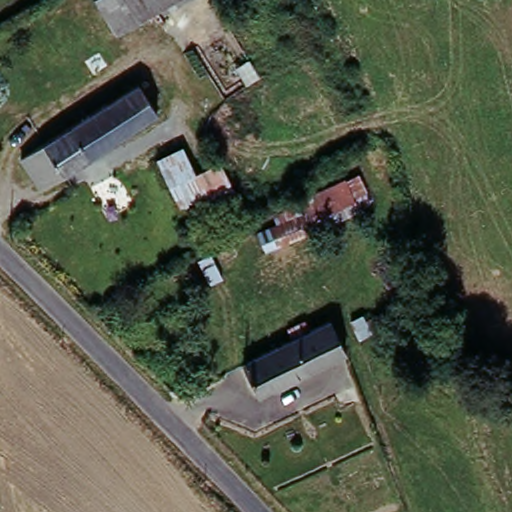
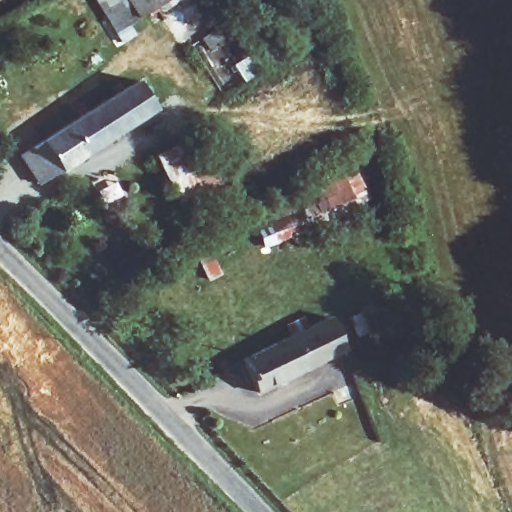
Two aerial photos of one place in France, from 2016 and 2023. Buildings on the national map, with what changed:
unchanged [(155,0),(161,12),(116,40),(94,0),(155,0)]
unchanged [(180,0),(161,12),(155,0),(180,0)]
unchanged [(16,154),(140,82),(157,113),(35,185),(16,154)]
unchanged [(181,149),(192,176),(217,164),(229,191),(241,185),(250,204),(212,219),(202,204),(176,214),(150,164),(181,149)]
unchanged [(363,211),(264,255),(255,237),(273,225),(269,214),(352,181),(363,211)]
unchanged [(256,358),(332,321),(345,350),(269,387),(256,358)]

